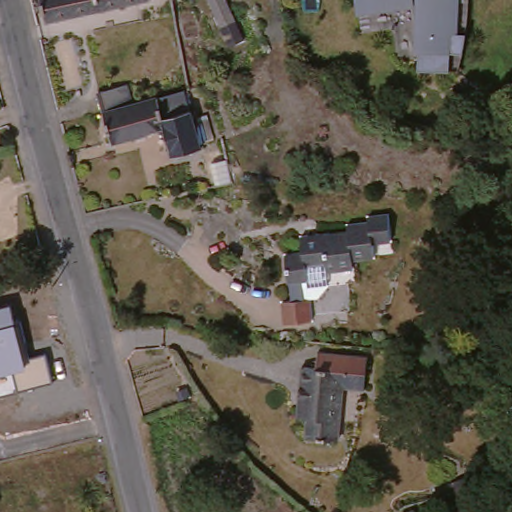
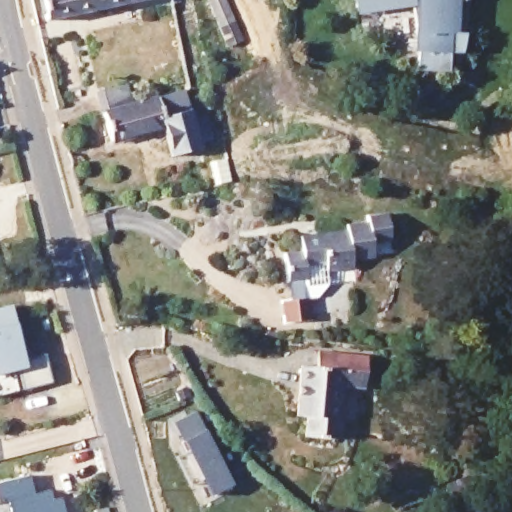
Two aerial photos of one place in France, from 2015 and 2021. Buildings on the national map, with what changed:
unchanged [(155,4),(40,28),(34,0),(154,0),(155,4)]
unchanged [(221,53),(200,1),(201,0),(221,0),(239,45),(221,53)]
unchanged [(461,26),(470,27),(469,50),(454,49),(453,70),(416,67),(417,3),(366,11),(365,0),(463,0),(461,26)]
unchanged [(304,62),(333,58),(336,73),(308,79),(304,62)]
unchanged [(160,157),(153,136),(108,145),(100,117),(93,94),(121,88),(128,109),(158,101),(155,88),(167,86),(165,73),(175,71),(180,94),(176,96),(189,150),(160,157)]
unchanged [(512,100),(512,115),(501,116),(499,102),(512,100)]
unchanged [(330,300),(322,302),(326,324),(293,332),(288,308),(296,305),(287,260),(305,255),(303,245),(345,235),(344,231),(368,226),(368,221),(384,217),(390,242),(378,246),(380,260),(364,262),(365,270),(338,276),(339,286),(330,300)]
unchanged [(0,395),(0,307),(11,304),(17,321),(26,358),(46,355),(53,381),(0,395)]
unchanged [(301,434),(293,434),(297,379),(311,380),(313,364),(363,366),(361,383),(360,399),(339,397),(335,449),(300,446),(301,434)]
new [(192,413),(204,431),(233,483),(209,496),(182,440),(173,423),(192,413)]
new [(33,494),(49,490),(53,502),(60,499),(64,512),(0,512),(0,482),(28,476),(33,494)]

